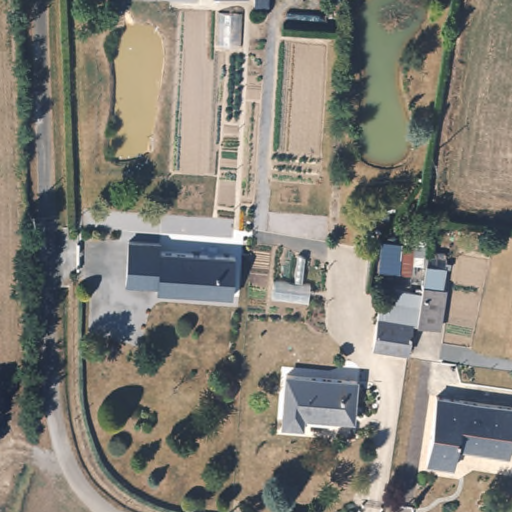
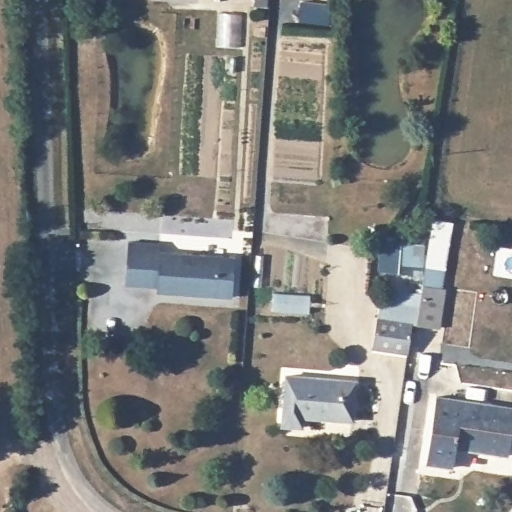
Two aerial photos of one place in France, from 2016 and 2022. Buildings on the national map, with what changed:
unchanged [(250,11),(214,9),(214,0),(251,0),(250,11)]
unchanged [(231,259),(229,299),(154,294),(155,288),(123,286),(126,243),(158,245),(157,254),(231,259)]
unchanged [(447,274),(440,315),(417,311),(424,270),(447,274)]
unchanged [(415,320),(410,352),(375,346),(380,314),(415,320)]
unchanged [(353,384),(349,424),(301,419),(300,430),(280,428),(284,378),(353,384)]
unchanged [(508,405),(501,452),(452,444),(449,464),(423,459),(426,440),(434,393),(508,405)]

